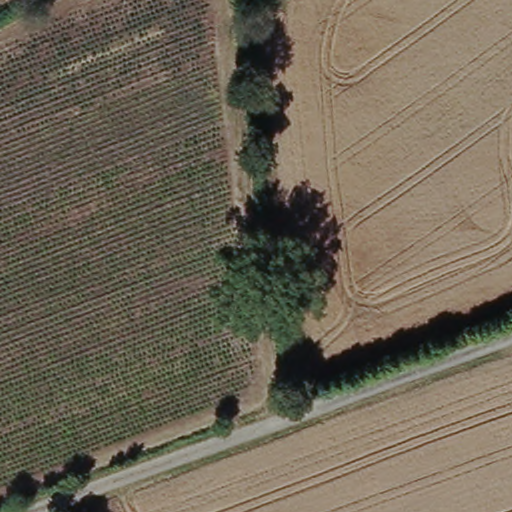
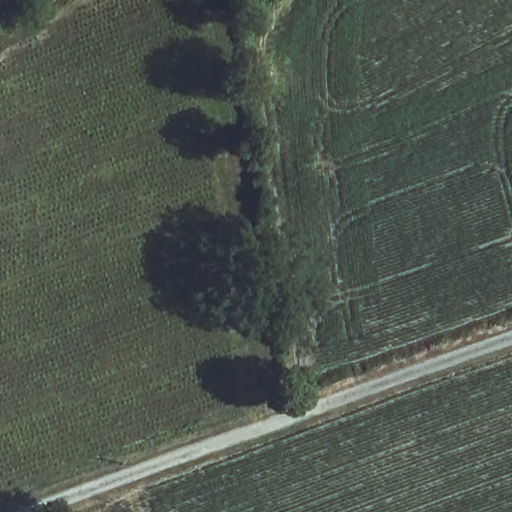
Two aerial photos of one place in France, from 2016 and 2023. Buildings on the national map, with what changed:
unchanged [(283,2),(252,6),(251,0),(283,0),(283,2)]

